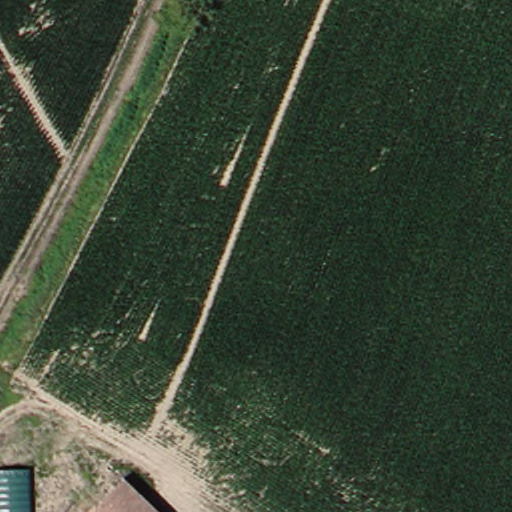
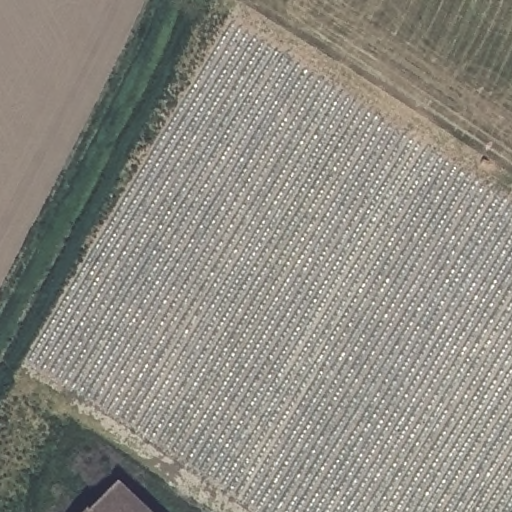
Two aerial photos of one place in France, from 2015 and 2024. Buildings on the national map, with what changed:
demolished [(0,469),(24,467),(26,512),(0,512),(0,469)]
unchanged [(112,482),(143,512),(83,512),(112,482)]

